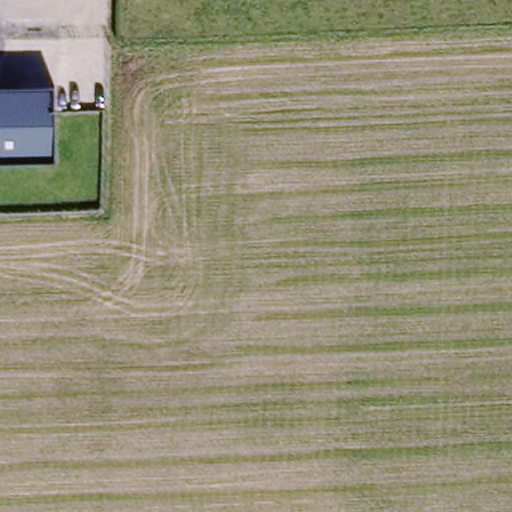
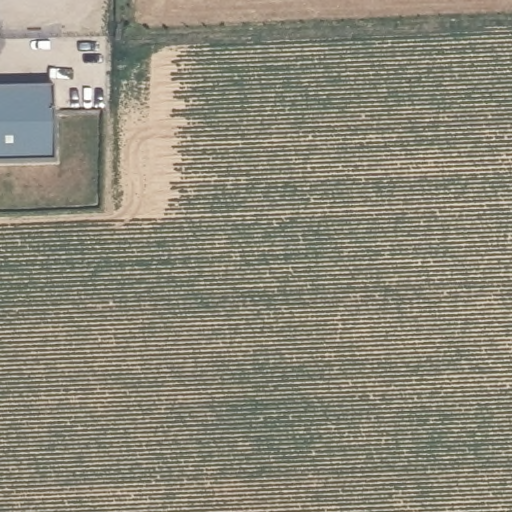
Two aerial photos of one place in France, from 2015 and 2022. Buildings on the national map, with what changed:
unchanged [(57,161),(0,163),(0,90),(53,89),(57,161)]

